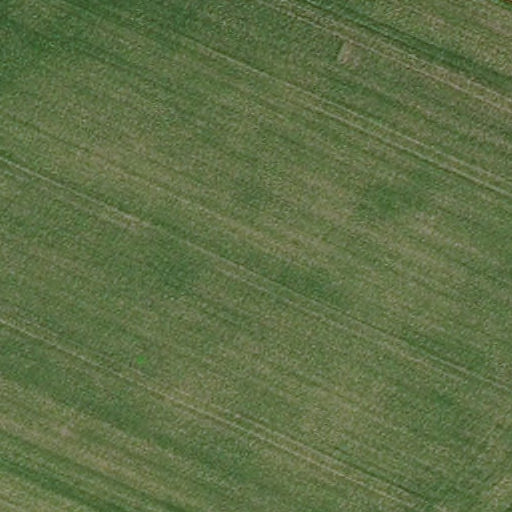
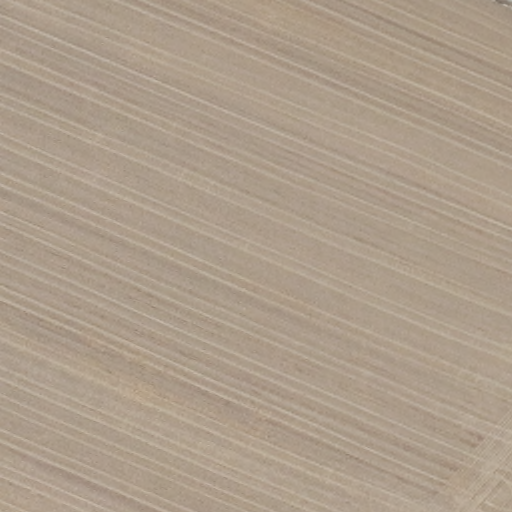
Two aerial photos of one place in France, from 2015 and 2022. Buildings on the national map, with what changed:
[]

